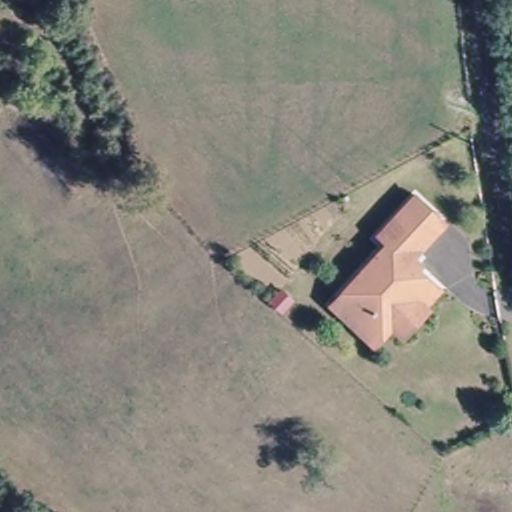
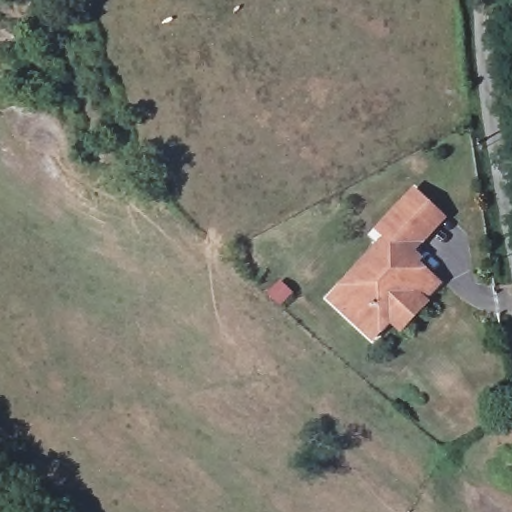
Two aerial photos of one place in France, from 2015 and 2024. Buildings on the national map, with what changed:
unchanged [(407,322),(395,308),(377,327),(336,288),(393,229),(385,220),(420,184),(446,208),(422,232),(416,227),(405,237),(445,273),(430,290),(433,293),(407,322)]

